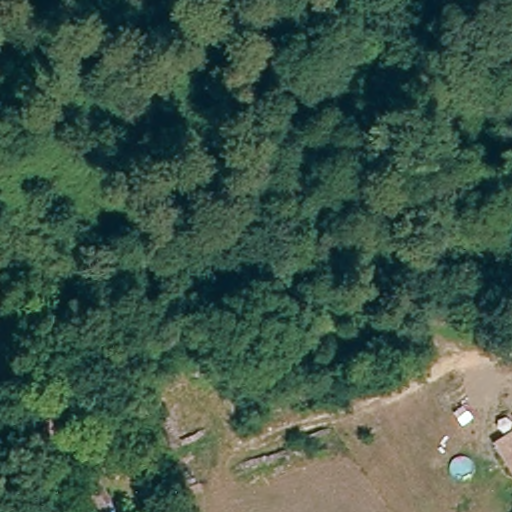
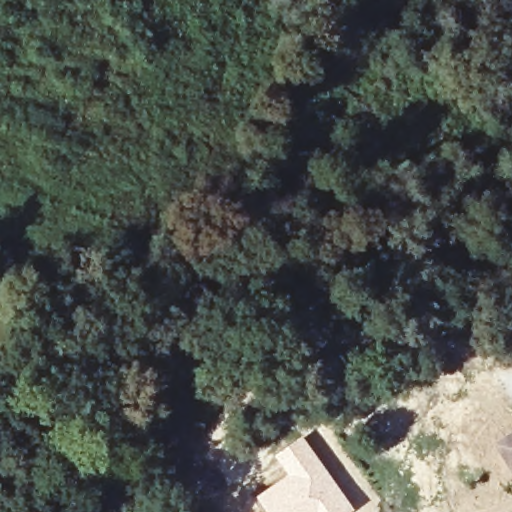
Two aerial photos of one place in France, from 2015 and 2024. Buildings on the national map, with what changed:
unchanged [(512,426),(512,461),(496,437),(512,426)]
new [(287,472),(274,455),(303,434),(356,507),(349,512),(269,512),(257,495),(287,472)]

